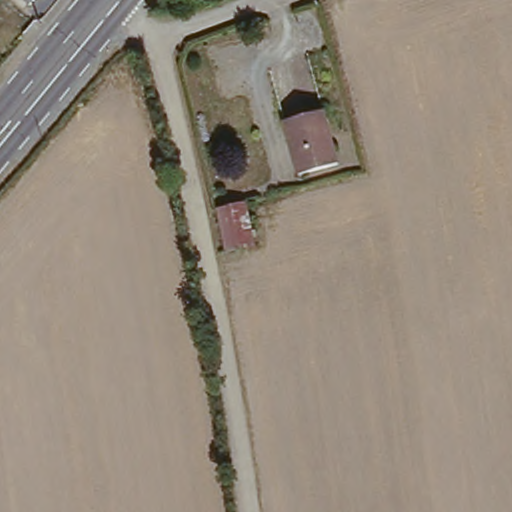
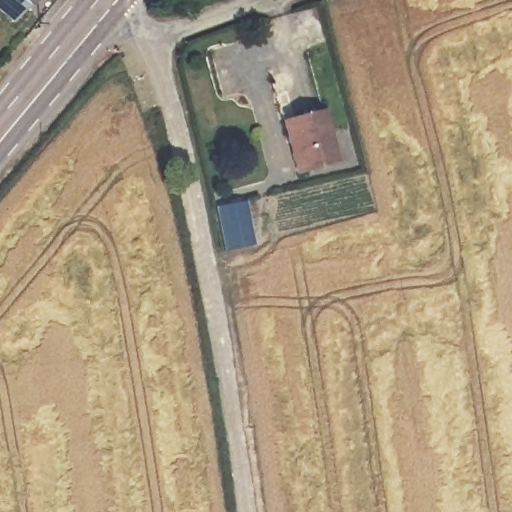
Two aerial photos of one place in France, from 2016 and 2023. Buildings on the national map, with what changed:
unchanged [(40,0),(32,9),(20,0),(40,0)]
unchanged [(328,123),(339,176),(299,183),(288,131),(328,123)]

